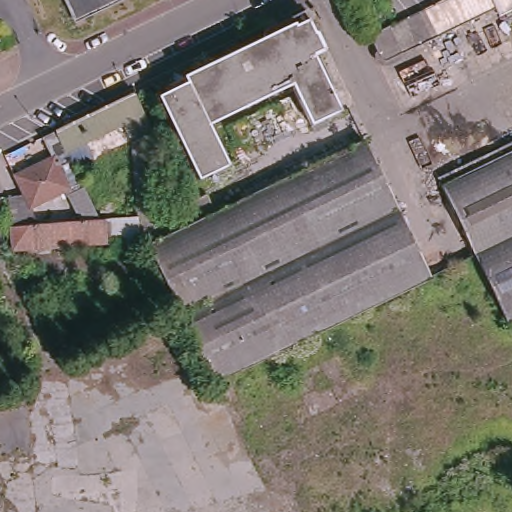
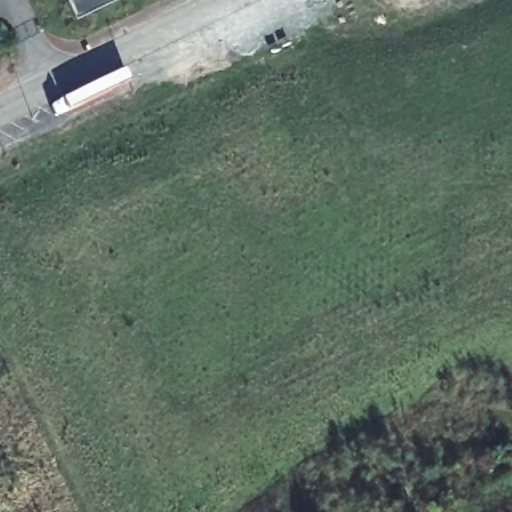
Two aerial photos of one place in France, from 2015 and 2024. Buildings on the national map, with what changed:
unchanged [(70,10),(66,0),(92,0),(70,10)]
demolished [(512,6),(497,13),(492,6),(380,60),(366,32),(434,0),(512,0),(512,6)]
demolished [(314,26),(321,42),(319,43),(321,47),(312,52),(337,106),(310,120),(290,80),(205,121),(224,161),(196,174),(157,95),(185,81),(182,75),(278,28),(275,22),(302,9),(311,27),(314,26)]
demolished [(100,216),(85,219),(69,187),(35,204),(44,222),(16,224),(13,192),(29,190),(20,172),(57,154),(47,135),(135,92),(153,129),(133,139),(125,123),(87,142),(95,157),(79,165),(74,167),(84,178),(95,203),(115,201),(117,214),(100,216)]
demolished [(219,210),(365,140),(431,273),(408,284),(240,366),(215,378),(177,298),(150,243),(170,234),(219,210)]
demolished [(475,256),(442,190),(512,157),(512,323),(509,325),(475,256)]
demolished [(44,222),(85,219),(100,218),(110,217),(112,239),(18,246),(16,224),(44,222)]

